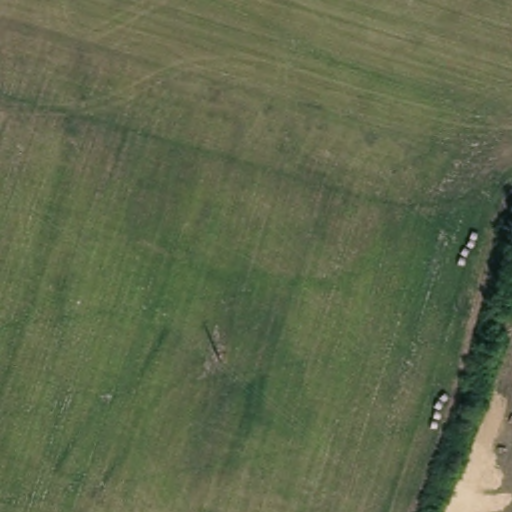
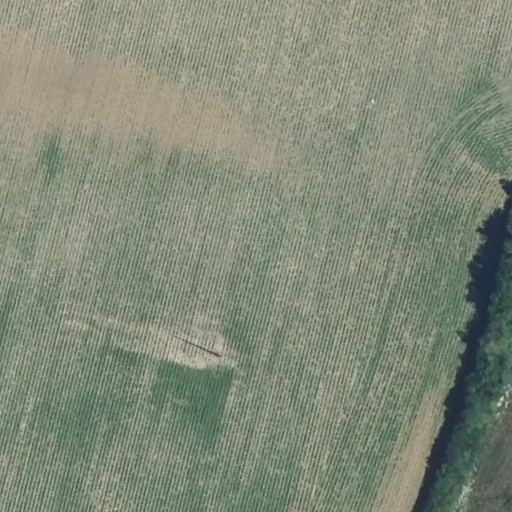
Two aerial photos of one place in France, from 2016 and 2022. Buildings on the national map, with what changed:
[]

